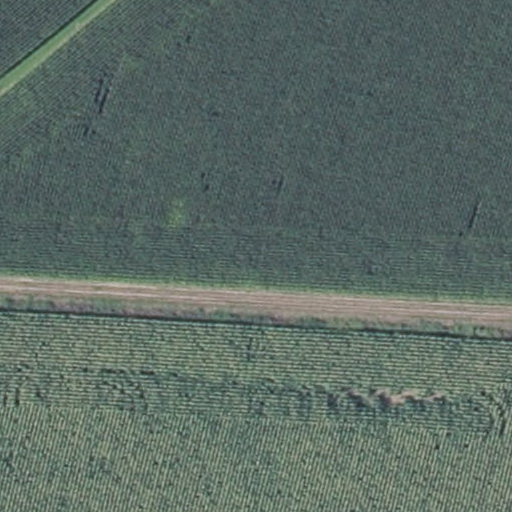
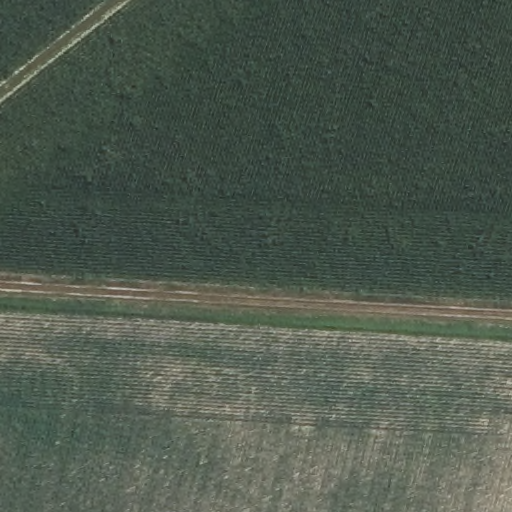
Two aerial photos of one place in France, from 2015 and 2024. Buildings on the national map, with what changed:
[]

